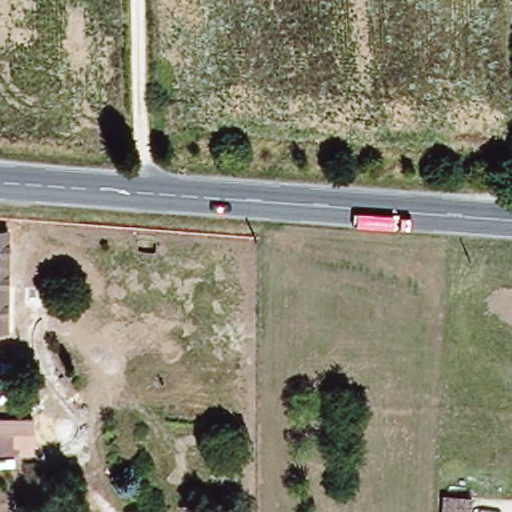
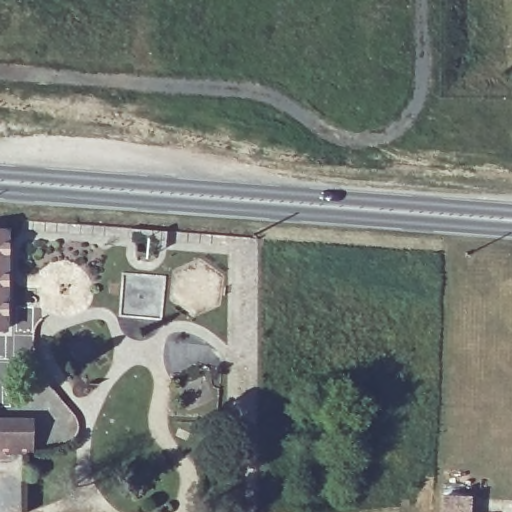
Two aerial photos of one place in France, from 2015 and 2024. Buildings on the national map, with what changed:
unchanged [(7,232),(2,331),(0,331),(0,232),(7,232)]
new [(122,271),(168,274),(162,320),(118,317),(122,271)]
unchanged [(32,421),(30,456),(0,454),(0,420),(32,421)]
unchanged [(466,512),(438,512),(437,497),(465,495),(466,512)]

